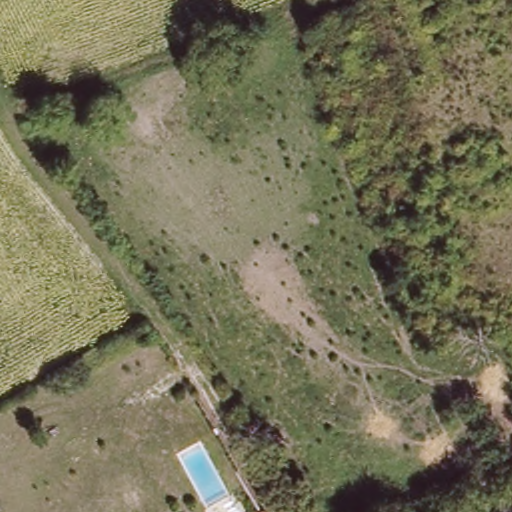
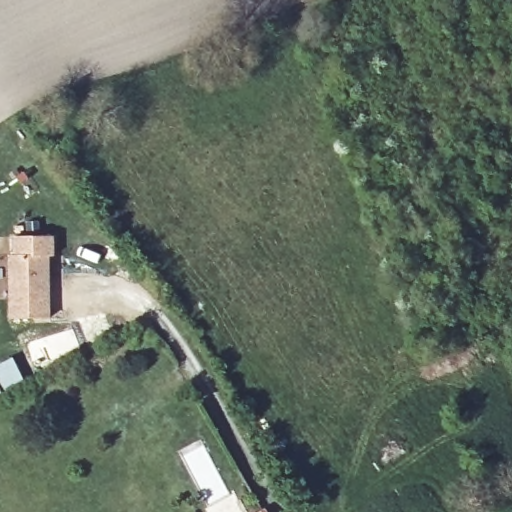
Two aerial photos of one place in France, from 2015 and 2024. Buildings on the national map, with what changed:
new [(15,256),(14,236),(54,235),(55,256),(50,256),(51,318),(10,318),(9,255),(15,256)]

